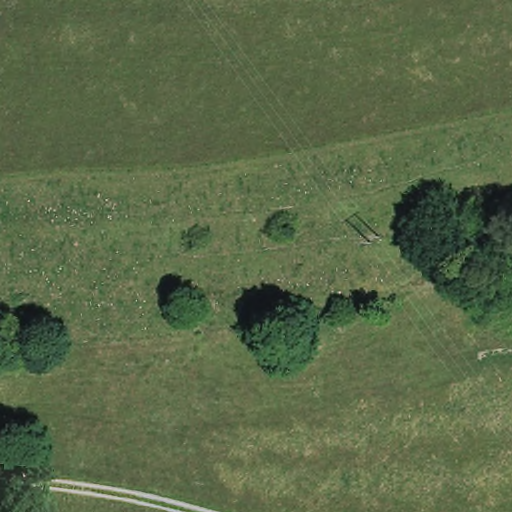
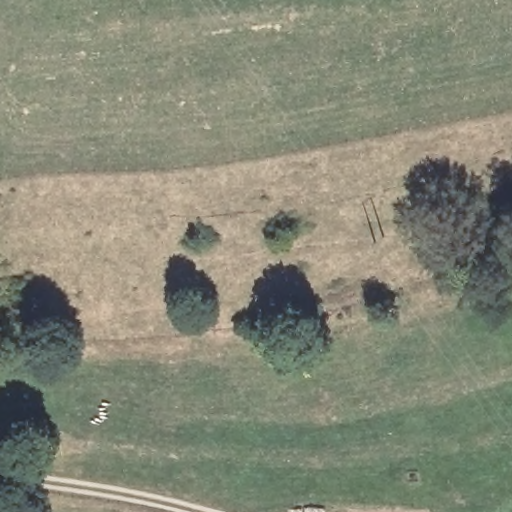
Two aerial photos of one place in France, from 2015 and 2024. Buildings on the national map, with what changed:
[]

